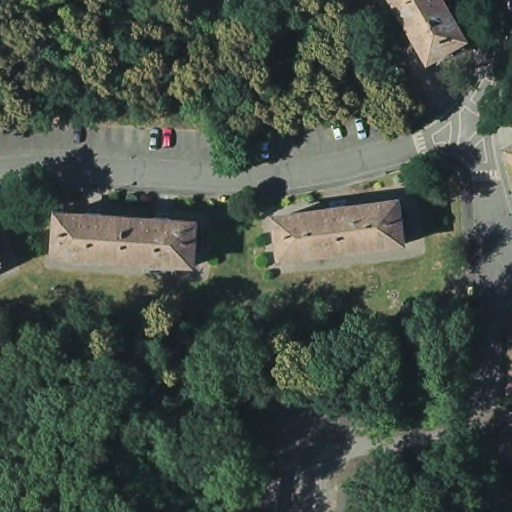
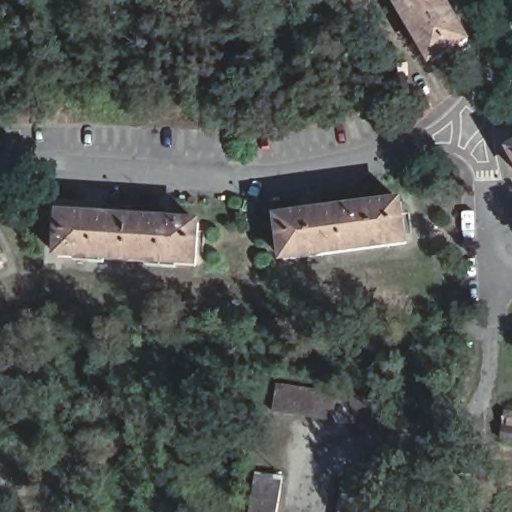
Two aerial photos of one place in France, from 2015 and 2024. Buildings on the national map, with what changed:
unchanged [(428,55),(396,0),(446,0),(467,35),(455,41),(459,47),(452,51),(448,45),(428,55)]
unchanged [(512,156),(508,150),(512,148),(512,156)]
unchanged [(279,263),(273,222),(323,216),(323,210),(342,208),(342,213),(395,206),(400,250),(279,263)]
unchanged [(55,255),(57,214),(83,215),(83,210),(102,212),(101,216),(153,220),(154,216),(168,217),(168,222),(195,224),(193,265),(55,255)]
unchanged [(512,340),(512,352),(503,352),(503,340),(512,340)]
unchanged [(505,356),(512,356),(512,366),(505,366),(505,356)]
unchanged [(512,371),(512,382),(504,382),(503,371),(512,371)]
unchanged [(341,422),(328,420),(317,419),(305,417),(293,415),(281,414),(265,411),(269,385),(285,387),(297,388),(308,390),(320,392),(332,394),(345,395),(357,397),(369,399),(366,426),(354,425),(341,422)]
unchanged [(512,388),(512,399),(503,398),(503,387),(512,388)]
unchanged [(512,410),(512,421),(509,421),(510,410),(512,410)]
unchanged [(512,425),(512,437),(506,436),(508,425),(512,425)]
unchanged [(512,442),(512,452),(503,450),(505,440),(512,442)]
unchanged [(512,457),(512,468),(501,466),(503,455),(512,457)]
unchanged [(250,493),(252,480),(255,468),(282,473),(280,485),(277,497),(275,510),(275,512),(248,512),(248,506),(250,493)]
unchanged [(343,498),(345,486),(371,489),(369,502),(368,512),(341,512),(342,510),(343,498)]
unchanged [(512,502),(497,500),(498,489),(512,491),(512,502)]
unchanged [(512,506),(512,512),(496,512),(497,503),(512,506)]

